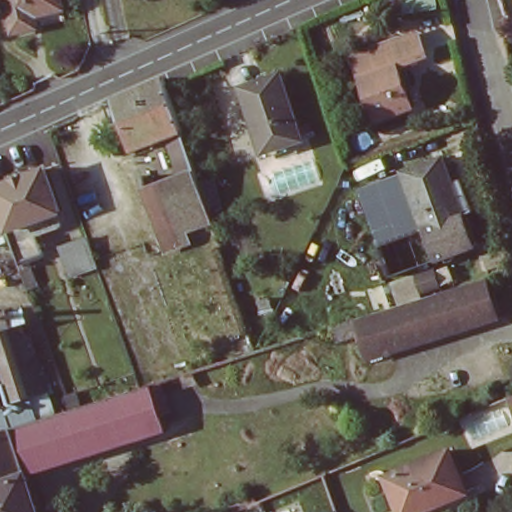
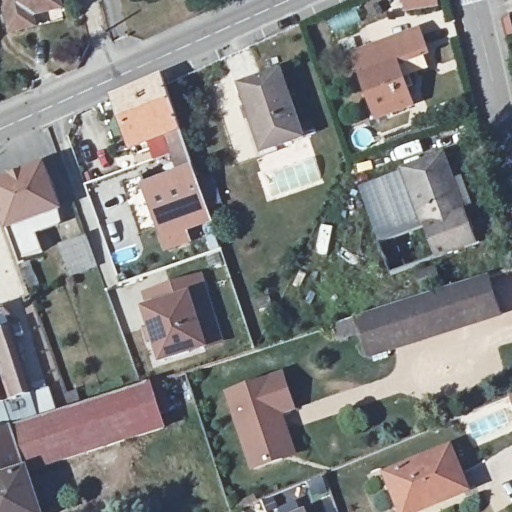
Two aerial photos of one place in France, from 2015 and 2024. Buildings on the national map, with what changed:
unchanged [(59,0),(62,8),(32,15),(35,27),(12,32),(4,0),(59,0)]
unchanged [(358,54),(425,31),(433,57),(399,69),(395,58),(363,69),(358,54)]
unchanged [(354,72),(363,69),(395,58),(399,69),(413,108),(374,125),(354,72)]
unchanged [(240,87),(280,74),(302,139),(267,151),(255,117),(251,118),(240,87)]
unchanged [(216,204),(203,208),(207,220),(180,230),(184,241),(162,250),(140,190),(157,184),(156,182),(175,175),(161,135),(125,149),(108,100),(144,84),(158,78),(160,86),(189,169),(194,183),(207,179),(216,204)]
unchanged [(437,260),(404,171),(443,157),(453,183),(464,214),(475,246),(437,260)]
unchanged [(37,248),(12,258),(0,226),(2,225),(0,220),(0,178),(39,164),(54,207),(49,208),(54,221),(30,229),(37,248)]
unchanged [(60,247),(87,238),(97,266),(70,276),(60,247)]
unchanged [(441,286),(421,292),(416,275),(436,269),(441,286)]
unchanged [(333,326),(397,305),(486,276),(499,316),(369,358),(361,334),(338,341),(333,326)]
new [(205,349),(162,362),(146,311),(150,310),(146,295),(201,278),(206,293),(222,343),(205,349)]
unchanged [(8,328),(10,328),(11,330),(20,327),(23,336),(28,334),(31,343),(29,344),(32,354),(34,353),(47,391),(55,415),(34,421),(0,432),(0,312),(3,311),(8,328)]
new [(288,374),(295,407),(286,409),(271,412),(281,456),(249,463),(232,386),(288,374)]
unchanged [(55,415),(69,410),(71,410),(81,406),(133,390),(141,387),(150,384),(164,430),(85,455),(40,469),(27,473),(0,482),(0,432),(34,421),(55,415)]
new [(512,396),(512,413),(507,398),(512,396)]
unchanged [(386,476),(450,450),(467,492),(418,512),(402,512),(401,510),(399,508),(386,476)]
unchanged [(39,512),(0,512),(0,482),(27,473),(39,512)]

